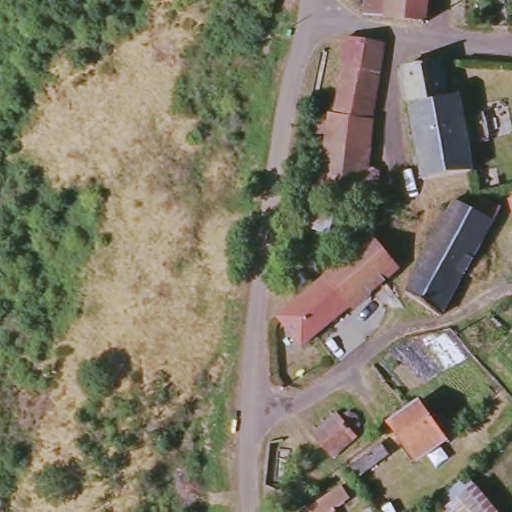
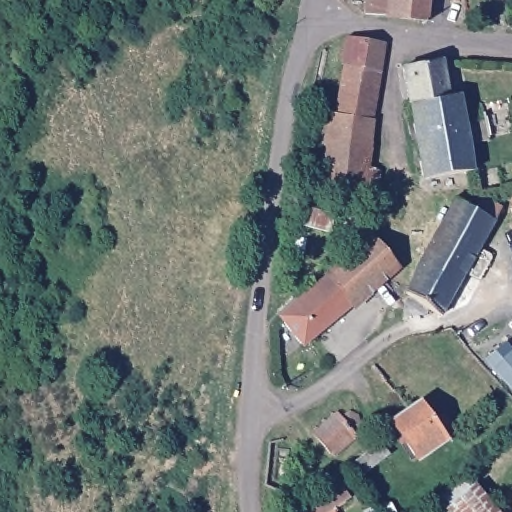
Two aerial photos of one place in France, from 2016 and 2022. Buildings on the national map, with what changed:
unchanged [(392,13),(392,12),(370,10),(370,0),(433,0),(432,16),(392,13)]
unchanged [(347,68),(345,68),(350,40),(387,46),(382,74),(347,68)]
unchanged [(403,66),(442,60),(448,97),(410,104),(403,66)]
unchanged [(374,123),(338,116),(347,68),(382,74),(374,123)]
unchanged [(448,97),(458,95),(471,172),(422,180),(410,104),(448,97)]
unchanged [(312,175),(325,176),(325,174),(330,138),(318,136),(321,118),(333,119),(334,116),(338,116),(374,123),(363,199),(363,203),(322,198),(310,196),(312,175)]
unchanged [(422,268),(459,201),(478,211),(485,198),(505,208),(497,221),(445,316),(410,293),(422,268)]
unchanged [(337,216),(333,231),(303,223),(307,208),(337,216)]
unchanged [(354,242),(345,231),(367,213),(376,224),(354,242)]
unchanged [(383,237),(410,266),(364,307),(362,305),(354,296),(338,278),(383,237)]
unchanged [(290,318),(302,308),(338,278),(354,296),(362,305),(327,335),(314,345),(290,318)]
unchanged [(423,462),(420,457),(396,423),(413,411),(426,402),(440,422),(449,415),(460,429),(450,436),(453,441),(423,462)]
unchanged [(337,412),(340,417),(348,413),(351,413),(357,420),(357,423),(352,430),(357,435),(333,456),(313,433),(337,412)]
unchanged [(395,455),(363,478),(355,468),(387,444),(395,455)]
unchanged [(455,511),(458,507),(450,497),(477,474),(485,485),(508,512),(455,512),(455,511)]
unchanged [(310,511),(342,489),(350,500),(335,511),(335,512),(310,512),(310,511)]
unchanged [(372,509),(374,512),(368,512),(372,509)]

